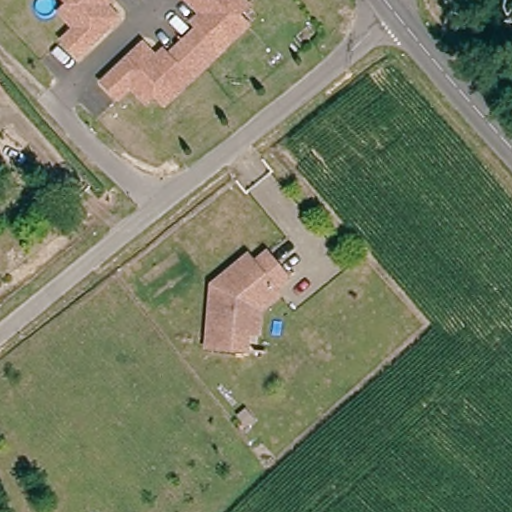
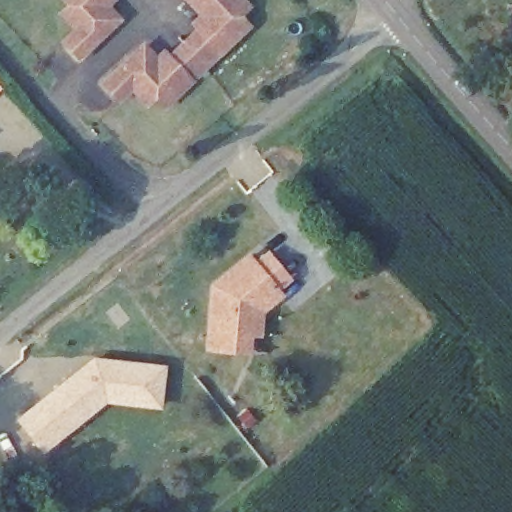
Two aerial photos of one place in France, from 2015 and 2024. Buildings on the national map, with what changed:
unchanged [(102,6),(114,20),(74,57),(59,41),(72,29),(57,13),(65,5),(60,0),(108,0),(102,6)]
unchanged [(152,96),(142,104),(127,88),(115,100),(100,84),(139,46),(152,60),(160,52),(165,58),(196,28),(191,23),(199,16),(183,0),(232,0),(242,10),(234,18),(244,28),(218,52),(186,82),(161,106),(152,96)]
unchanged [(265,306),(263,331),(254,330),(252,347),(212,344),(217,282),(253,252),(260,260),(272,249),(292,275),(277,287),(282,292),(265,306)]
new [(13,418),(93,356),(166,364),(160,409),(106,402),(42,454),(13,418)]

